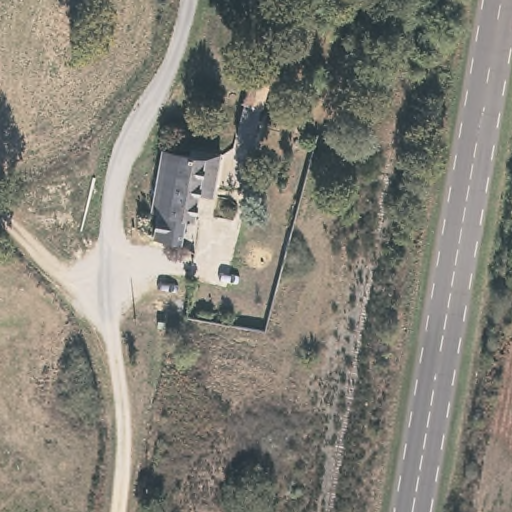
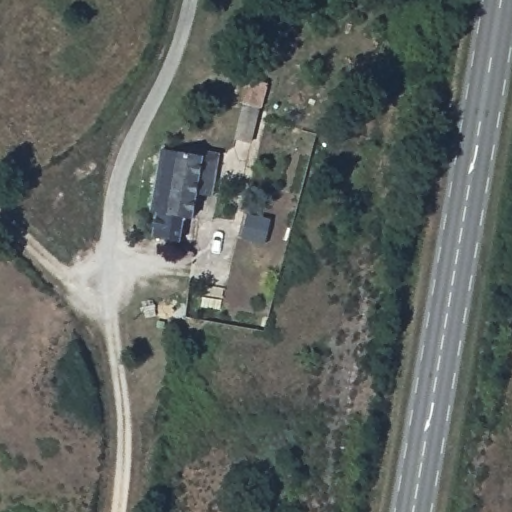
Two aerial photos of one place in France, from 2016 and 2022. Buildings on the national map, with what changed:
unchanged [(267,85),(255,141),(242,138),(237,137),(247,102),(244,101),(250,80),(267,85)]
unchanged [(192,142),(221,147),(214,191),(199,189),(193,212),(186,211),(182,237),(155,232),(159,206),(169,208),(180,148),(191,150),(192,142)]

